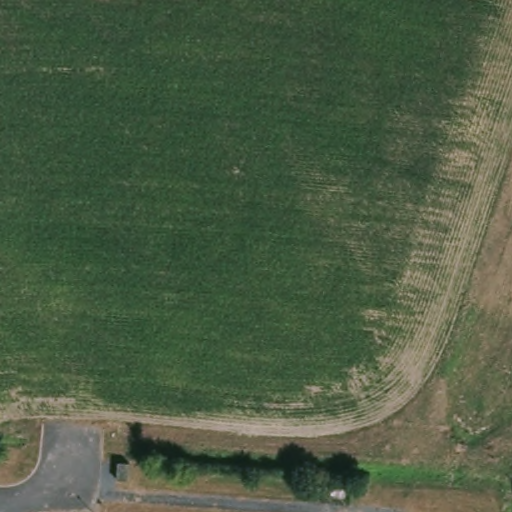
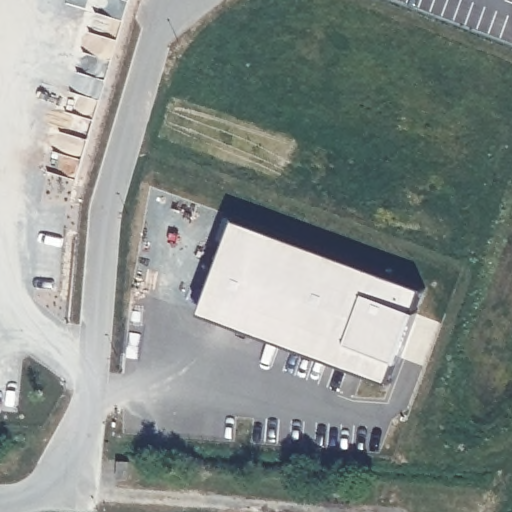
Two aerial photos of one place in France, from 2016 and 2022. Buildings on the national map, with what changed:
new [(203,312),(237,220),(424,288),(419,309),(399,360),(389,380),(203,312)]

